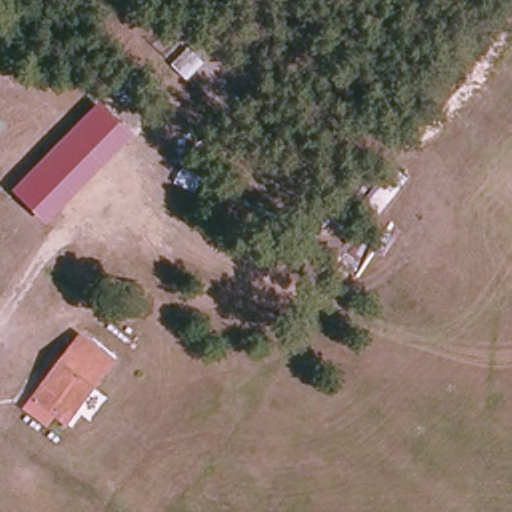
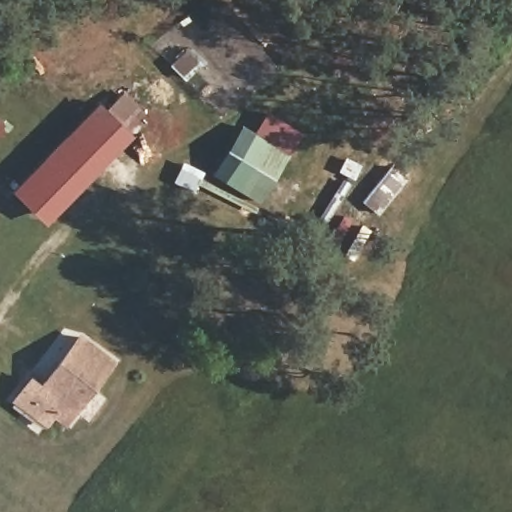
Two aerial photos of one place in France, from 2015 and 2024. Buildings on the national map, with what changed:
unchanged [(12,191),(101,101),(135,132),(46,224),(12,191)]
new [(258,204),(224,182),(255,133),(288,155),(258,204)]
unchanged [(82,337),(112,360),(77,409),(71,404),(61,415),(36,396),(82,337)]

